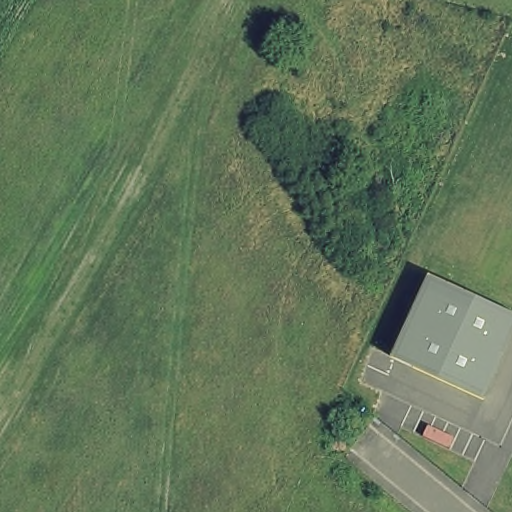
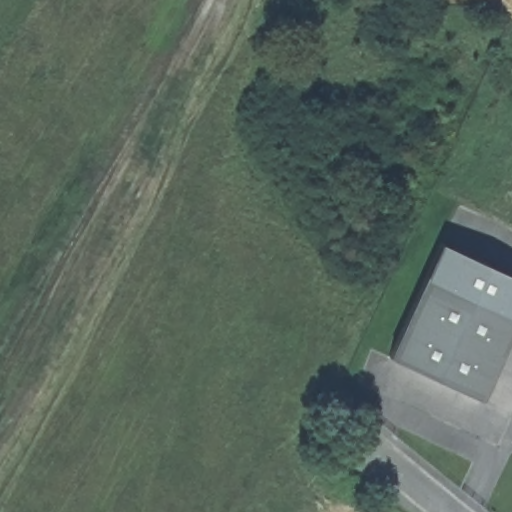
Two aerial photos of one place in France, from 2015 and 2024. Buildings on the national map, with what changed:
new [(512,274),(512,313),(429,275),(443,244),(512,274)]
unchanged [(512,313),(512,336),(483,400),(391,357),(429,275),(512,313)]

